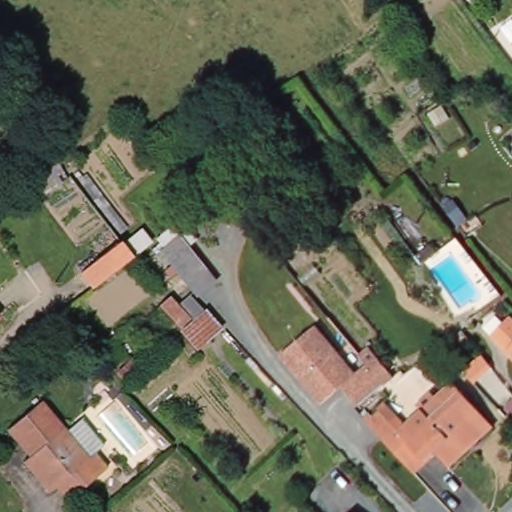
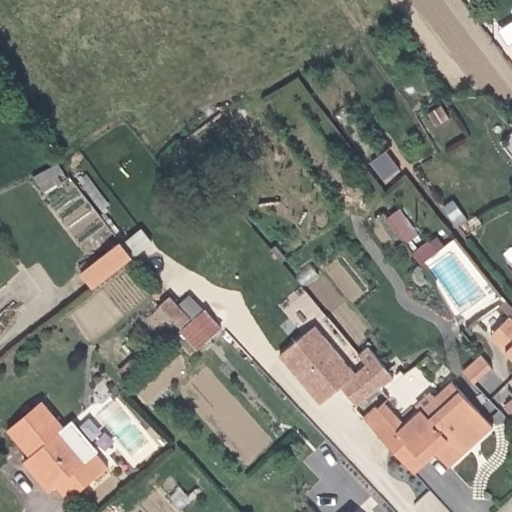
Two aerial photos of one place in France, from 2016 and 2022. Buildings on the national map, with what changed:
unchanged [(133,251),(110,271),(93,286),(81,272),(120,237),(133,251)]
unchanged [(182,239),(212,273),(193,290),(162,256),(182,239)]
unchanged [(193,320),(185,329),(180,325),(179,326),(163,310),(172,297),(193,320)]
unchanged [(186,333),(192,327),(207,312),(224,330),(209,345),(202,350),(186,333)]
unchanged [(493,333),(502,325),(512,315),(512,351),(498,338),(493,333)]
unchanged [(323,402),(283,352),(318,324),(358,373),(369,363),(360,353),(370,345),(395,375),(386,383),(365,400),(360,405),(344,385),(336,391),(323,402)]
unchanged [(371,423),(386,409),(385,407),(391,401),(410,422),(424,410),(421,407),(422,401),(430,393),(433,393),(439,398),(456,381),(497,426),(452,467),(440,455),(420,476),(378,431),(371,423)]
unchanged [(70,501),(56,487),(50,492),(24,461),(30,456),(7,428),(39,400),(65,430),(80,417),(103,445),(95,452),(110,467),(70,501)]

